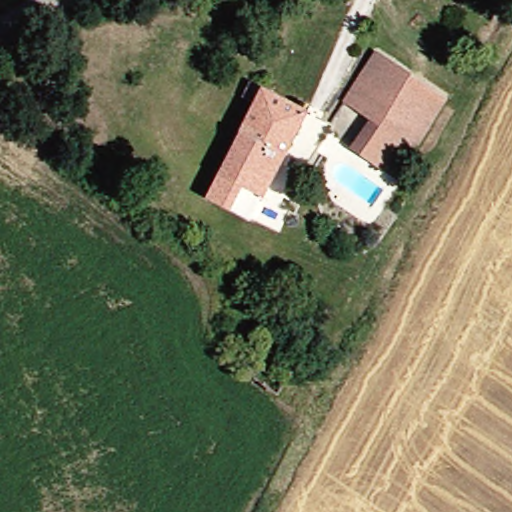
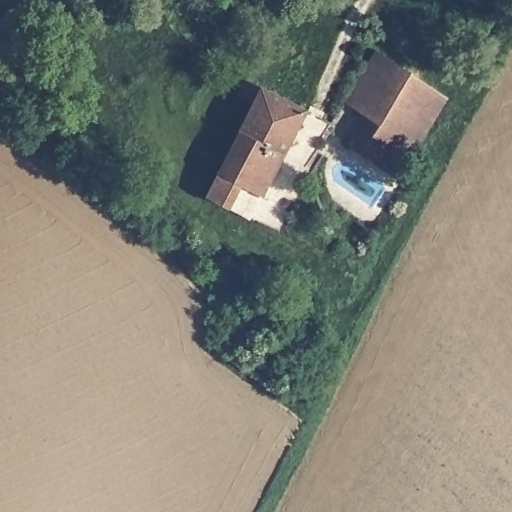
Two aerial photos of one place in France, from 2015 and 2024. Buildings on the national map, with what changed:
unchanged [(396,178),(322,134),(352,88),(370,101),(380,83),(362,70),(371,54),(444,99),(396,178)]
unchanged [(247,100),(240,95),(249,77),(308,110),(267,192),(240,178),(218,166),(247,100)]
unchanged [(267,192),(251,224),(223,208),(240,178),(267,192)]

